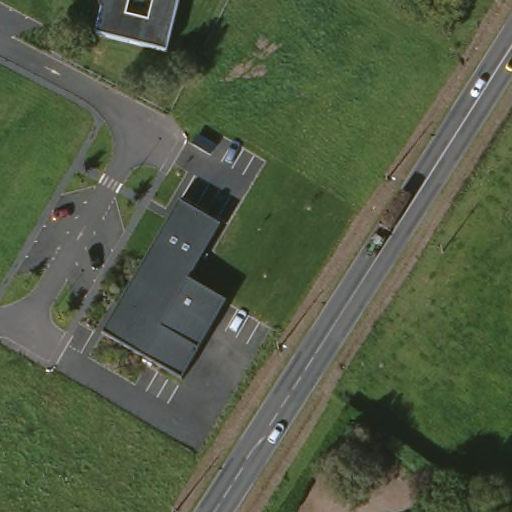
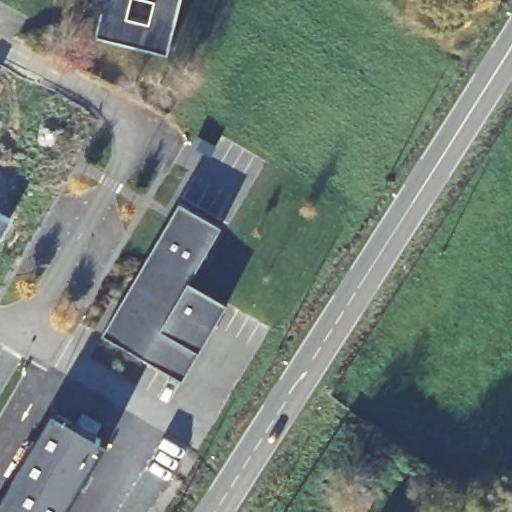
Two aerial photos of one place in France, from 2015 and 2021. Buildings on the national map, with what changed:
unchanged [(175,49),(105,32),(110,10),(105,0),(187,0),(175,49)]
unchanged [(180,204),(221,230),(187,283),(227,304),(199,349),(182,380),(105,334),(180,204)]
new [(110,446),(71,512),(0,512),(0,506),(55,413),(110,446)]

